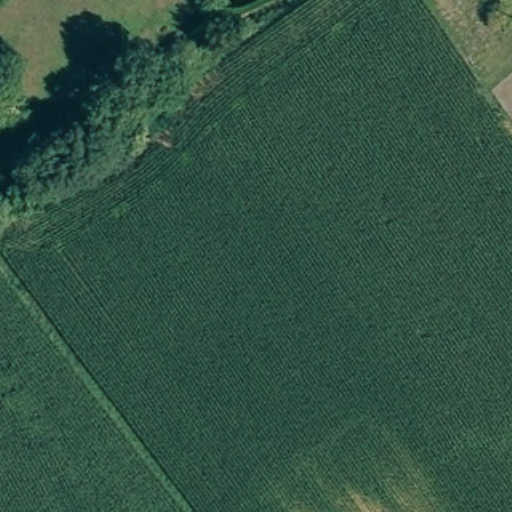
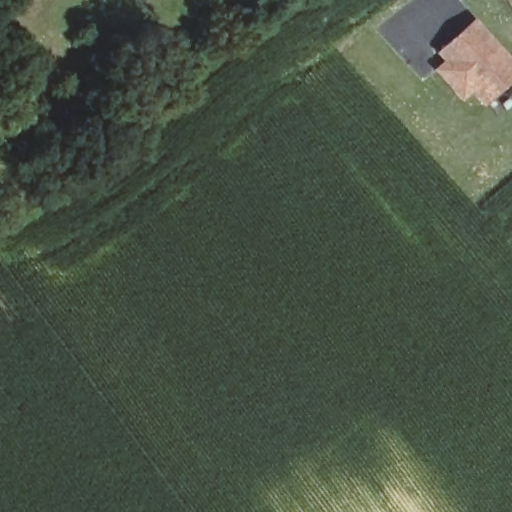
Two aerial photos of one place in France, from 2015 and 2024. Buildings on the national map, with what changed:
new [(439,61),(433,53),(475,17),(512,59),(512,80),(482,107),(470,95),(461,104),(430,70),(439,61)]

